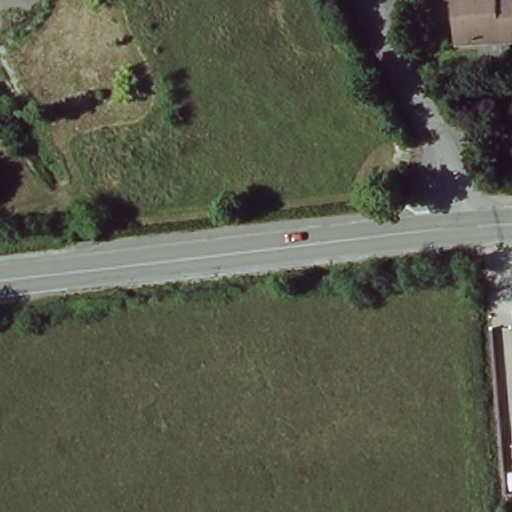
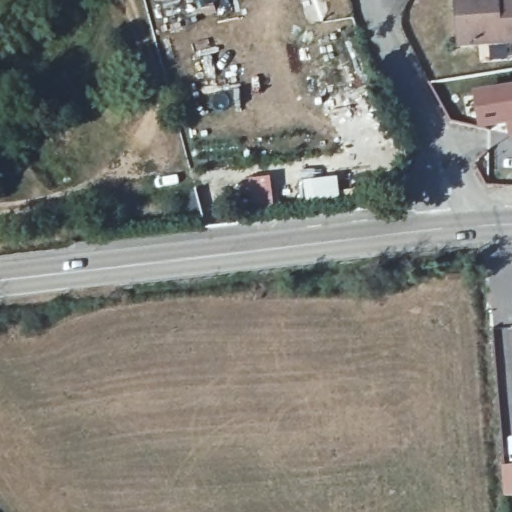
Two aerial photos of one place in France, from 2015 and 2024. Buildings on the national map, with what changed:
unchanged [(453,0),(494,0),(495,4),(512,3),(512,42),(457,47),(453,0)]
new [(512,138),(508,138),(505,125),(476,129),(469,90),(512,84),(512,138)]

